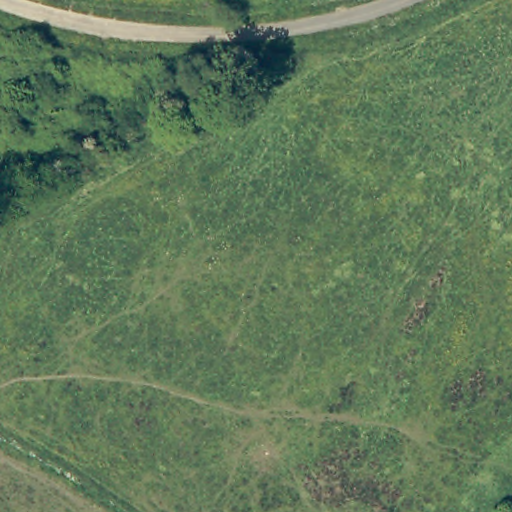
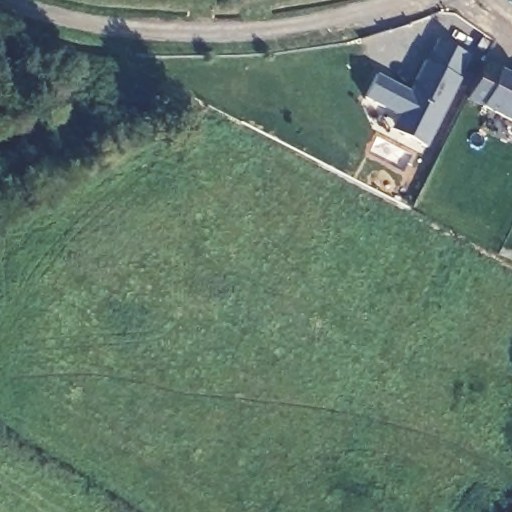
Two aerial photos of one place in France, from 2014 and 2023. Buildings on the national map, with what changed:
new [(363,98),(375,75),(408,92),(414,80),(424,61),(426,62),(437,40),(468,56),(456,78),(459,79),(423,148),(401,137),(388,130),(396,115),(363,98)]
new [(499,71),(512,78),(512,123),(480,107),(499,71)]

